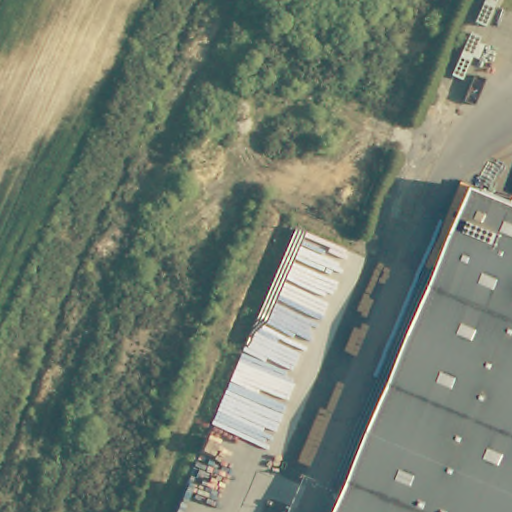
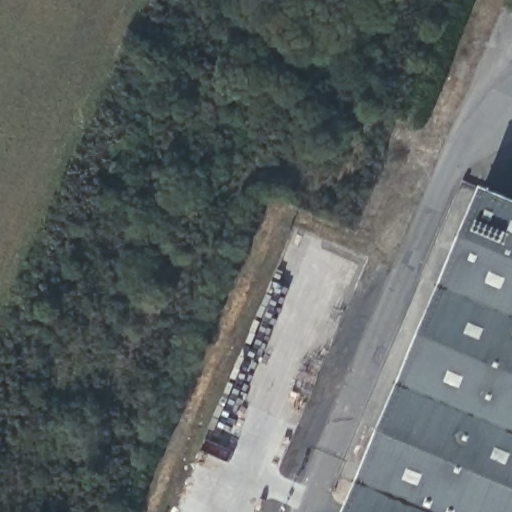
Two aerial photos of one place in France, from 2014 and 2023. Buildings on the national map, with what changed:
unchanged [(484,194),(512,206),(512,255),(404,512),(350,512),(484,194)]
unchanged [(512,255),(512,512),(404,512),(512,255)]

